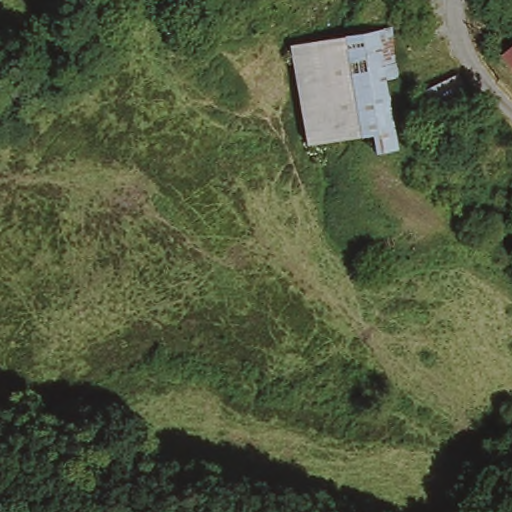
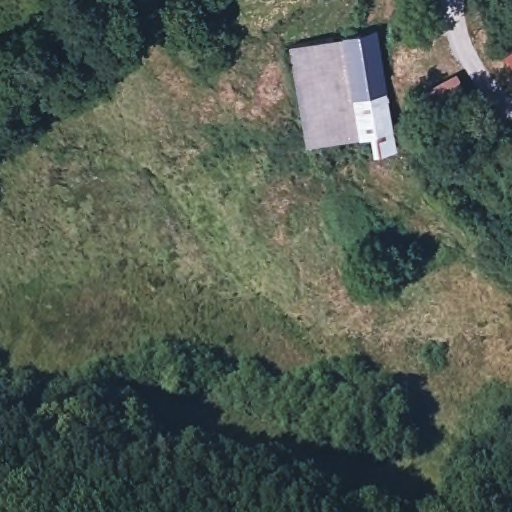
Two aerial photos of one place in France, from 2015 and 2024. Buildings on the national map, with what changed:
unchanged [(380,127),(358,130),(356,114),(348,115),(332,35),(336,34),(376,27),(387,76),(372,78),(380,127)]
unchanged [(293,87),(284,43),(332,35),(348,115),(324,120),(300,124),(293,87)]
unchanged [(498,51),(512,41),(512,68),(498,51)]
unchanged [(462,92),(429,106),(418,83),(453,72),(462,92)]

